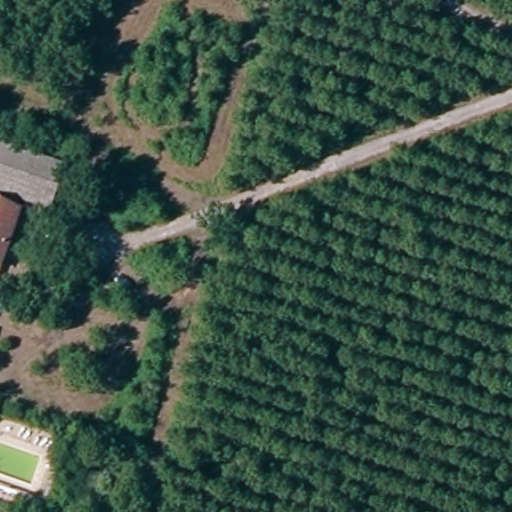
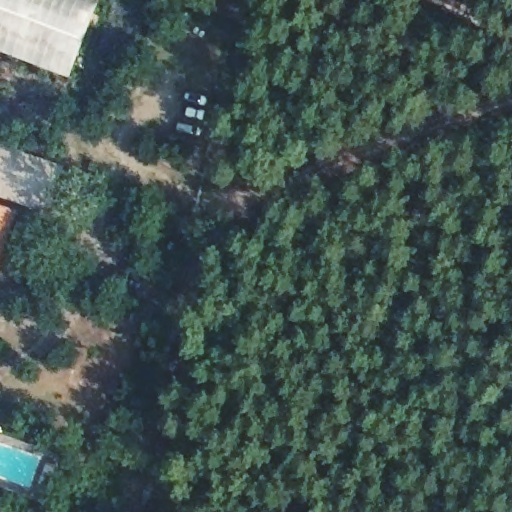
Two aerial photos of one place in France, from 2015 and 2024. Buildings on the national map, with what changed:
new [(69,79),(0,52),(0,0),(99,0),(69,79)]
unchanged [(0,197),(0,153),(49,170),(34,208),(0,197)]
unchanged [(0,213),(12,217),(0,249),(0,213)]

